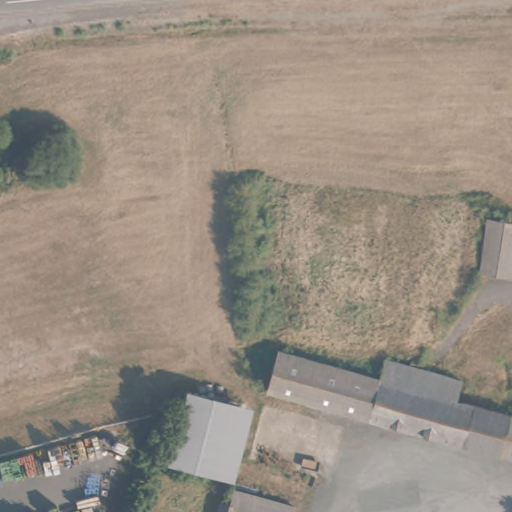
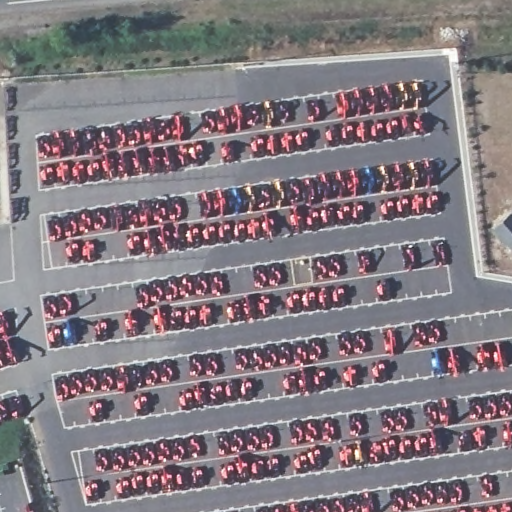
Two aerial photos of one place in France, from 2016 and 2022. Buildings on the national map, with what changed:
demolished [(478,271),(485,218),(512,222),(512,256),(508,275),(478,271)]
demolished [(270,391),(281,352),(386,381),(385,382),(375,420),(270,391)]
demolished [(375,420),(385,382),(386,381),(393,362),(423,370),(470,383),(464,402),(476,406),(465,445),(375,420)]
demolished [(251,409),(230,480),(165,462),(184,391),(251,409)]
demolished [(476,406),(512,416),(512,458),(465,445),(476,406)]
demolished [(230,504),(240,507),(246,490),(305,508),(304,512),(252,512),(249,511),(249,512),(227,512),(230,504)]

